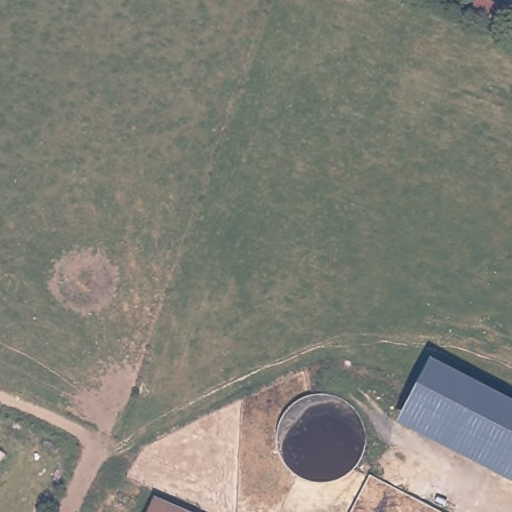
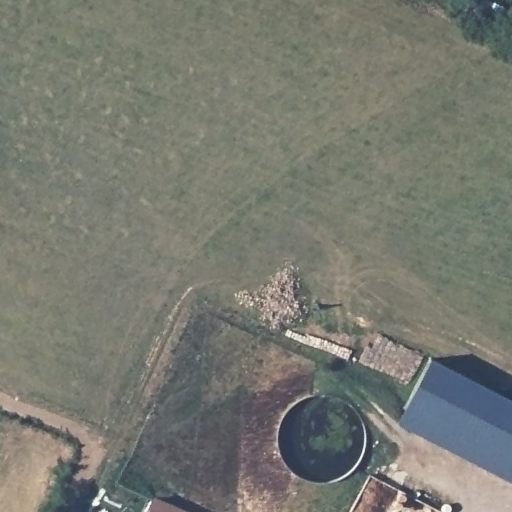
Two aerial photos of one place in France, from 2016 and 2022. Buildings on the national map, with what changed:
unchanged [(512,399),(512,480),(395,420),(429,357),(512,399)]
unchanged [(148,512),(153,498),(183,510),(182,512),(148,512)]
unchanged [(187,512),(182,512),(183,510),(187,512)]

